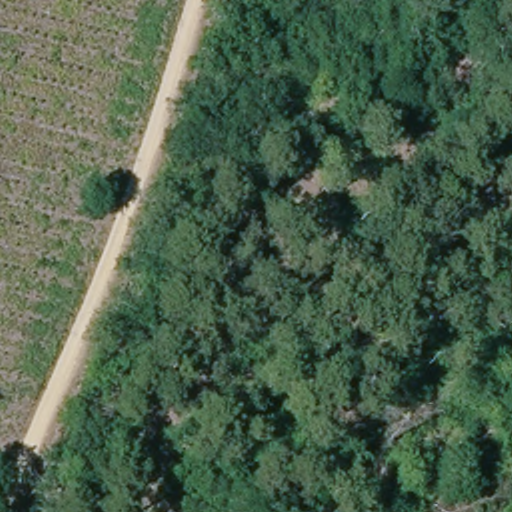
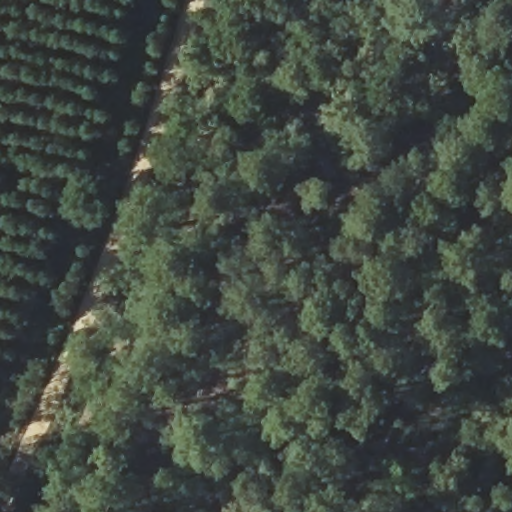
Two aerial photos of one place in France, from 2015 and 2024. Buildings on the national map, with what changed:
[]

